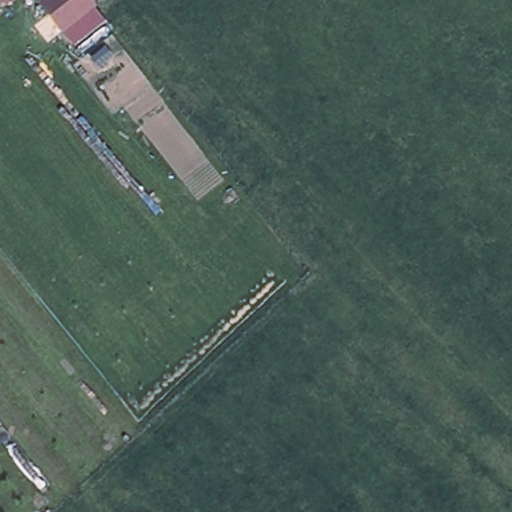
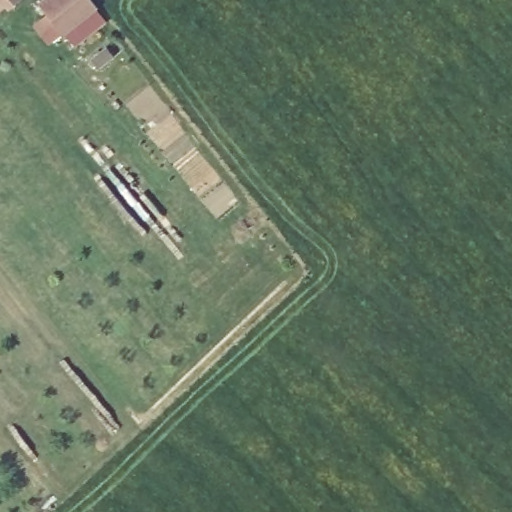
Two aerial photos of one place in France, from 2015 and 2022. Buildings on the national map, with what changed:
unchanged [(0,0),(3,0),(0,3),(0,0)]
unchanged [(3,0),(10,0),(7,3),(3,0)]
unchanged [(94,4),(73,20),(61,29),(40,2),(43,0),(91,0),(93,2),(94,4)]

